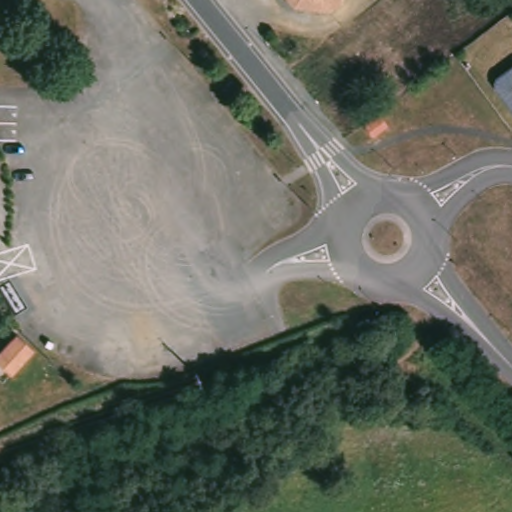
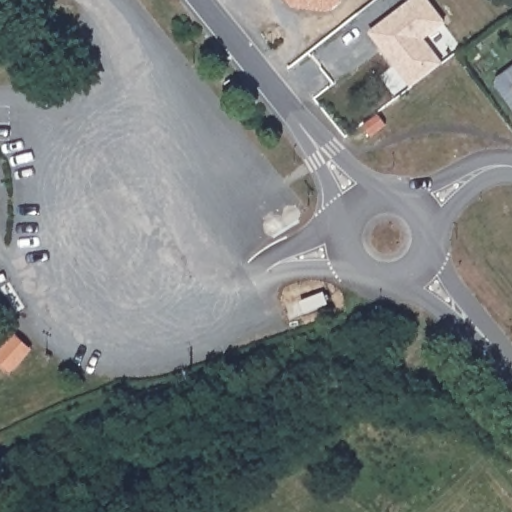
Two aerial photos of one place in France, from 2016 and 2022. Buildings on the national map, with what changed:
unchanged [(329,11),(291,8),(284,0),(341,0),(329,11)]
new [(425,38),(443,64),(410,87),(367,33),(409,0),(429,0),(446,23),(425,38)]
unchanged [(0,370),(0,353),(12,341),(27,357),(7,377),(0,370)]

